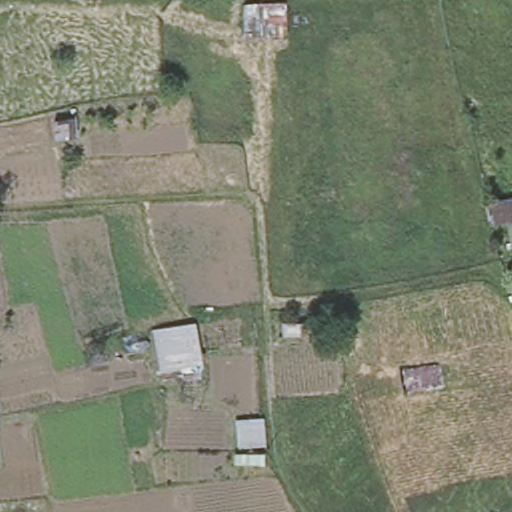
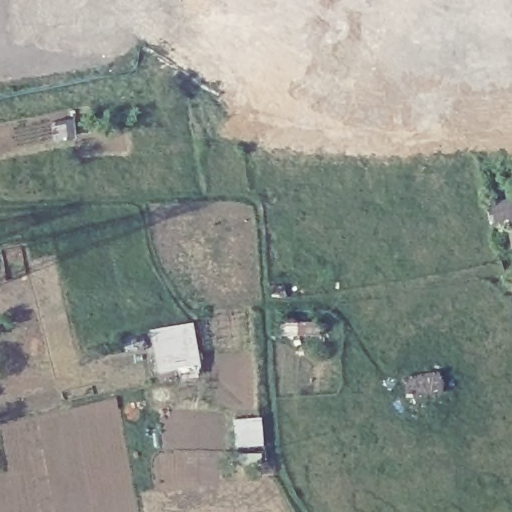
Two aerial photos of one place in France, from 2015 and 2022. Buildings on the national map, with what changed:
unchanged [(507,282),(512,280),(512,292),(507,282)]
unchanged [(204,368),(163,376),(151,328),(199,320),(204,368)]

